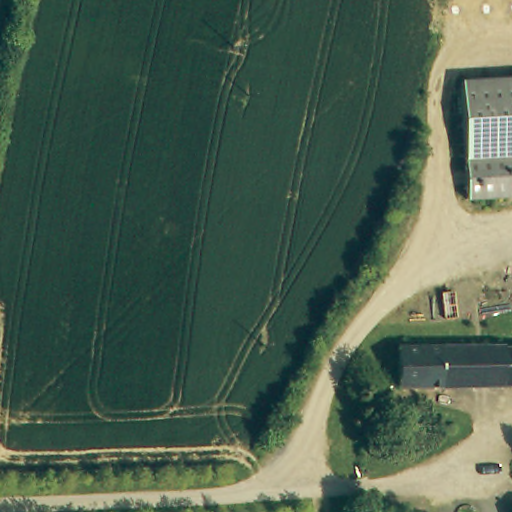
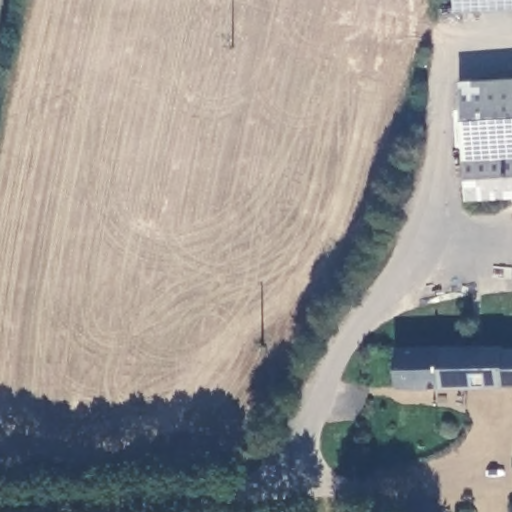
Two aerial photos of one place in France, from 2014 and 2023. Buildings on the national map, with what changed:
new [(454,0),(512,0),(512,9),(455,12),(454,0)]
unchanged [(465,73),(512,73),(512,150),(467,151),(465,73)]
unchanged [(467,151),(512,150),(512,196),(468,196),(467,151)]
unchanged [(402,342),(512,343),(512,383),(401,382),(402,342)]
unchanged [(425,512),(365,512),(365,498),(426,495),(425,512)]

